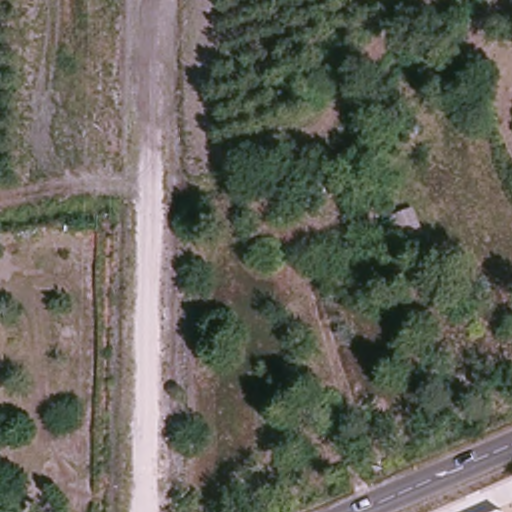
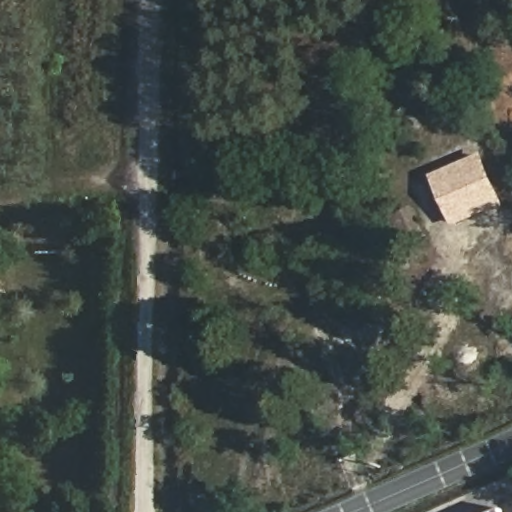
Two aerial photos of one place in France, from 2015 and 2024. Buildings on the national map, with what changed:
new [(503,206),(452,228),(430,177),(480,155),(491,180),(503,206)]

